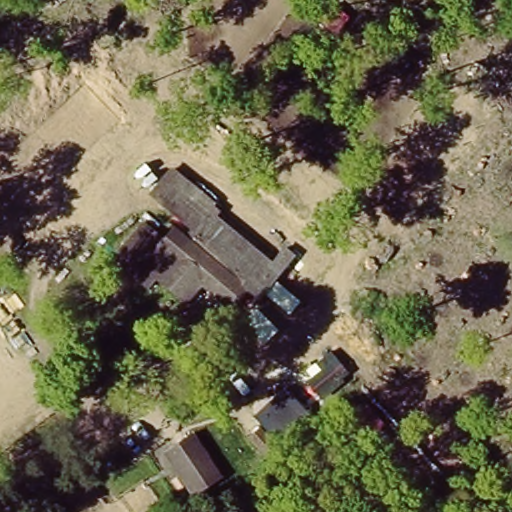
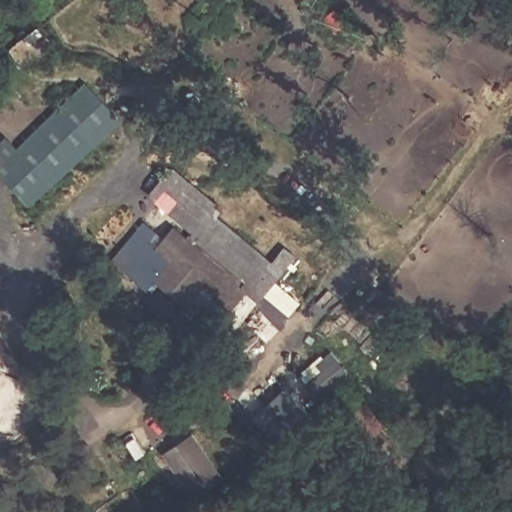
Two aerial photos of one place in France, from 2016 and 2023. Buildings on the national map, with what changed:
new [(80,94),(110,125),(30,200),(0,170),(0,169),(0,152),(12,141),(21,150),(80,94)]
unchanged [(263,348),(272,337),(226,299),(238,284),(228,275),(210,296),(185,274),(168,294),(136,266),(172,224),(145,202),(170,172),(288,271),(270,294),(291,312),(280,324),(292,333),(273,356),(263,348)]
unchanged [(212,478),(192,492),(166,452),(186,440),(212,478)]

